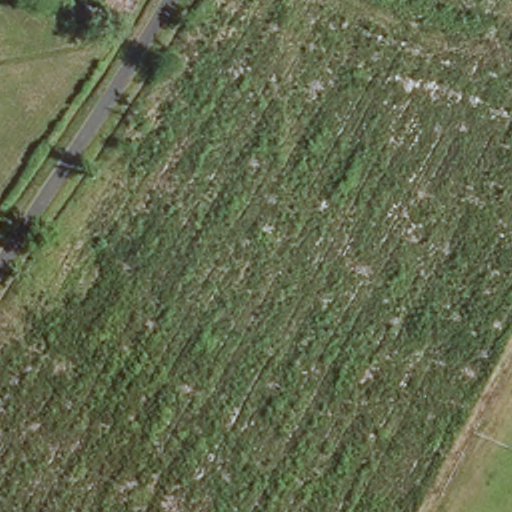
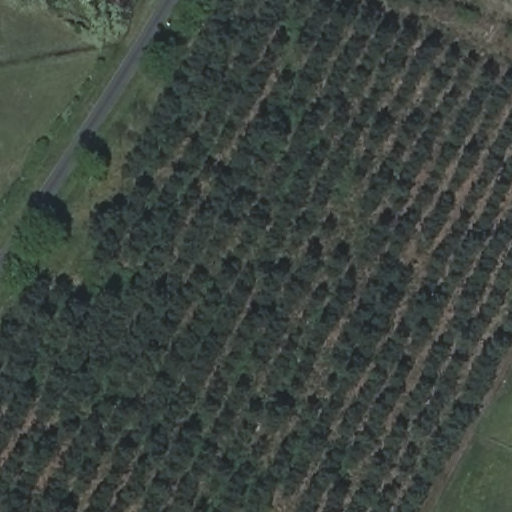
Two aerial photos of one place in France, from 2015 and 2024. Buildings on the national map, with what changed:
unchanged [(125,9),(107,0),(130,0),(125,9)]

